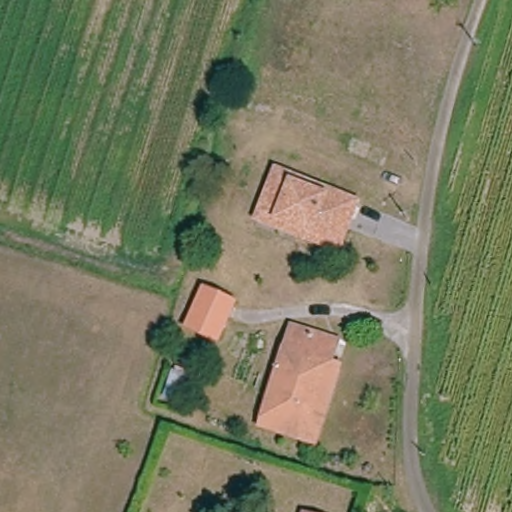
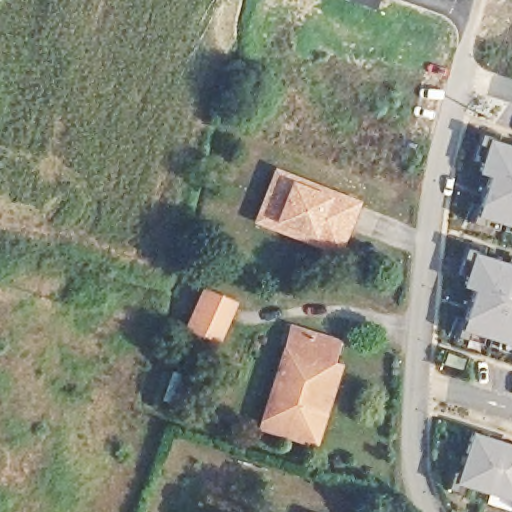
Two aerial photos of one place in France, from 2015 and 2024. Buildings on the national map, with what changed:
new [(476,212),(488,175),(477,172),(488,139),(512,146),(512,223),(476,212)]
unchanged [(298,183),(295,189),(327,201),(329,195),(359,206),(352,224),(347,222),(339,244),(283,223),(280,230),(262,223),(279,176),(298,183)]
new [(459,327),(471,287),(461,283),(471,249),(512,262),(512,343),(459,327)]
unchanged [(185,325),(189,315),(199,285),(228,295),(217,326),(214,335),(185,325)]
unchanged [(308,433),(264,419),(292,326),(337,340),(330,361),(308,433)]
unchanged [(343,365),(317,448),(260,431),(264,419),(308,433),(330,361),(343,365)]
new [(454,482),(469,431),(512,443),(512,499),(454,482)]

